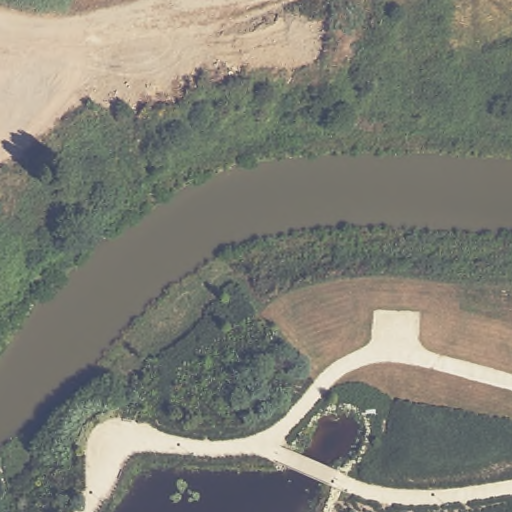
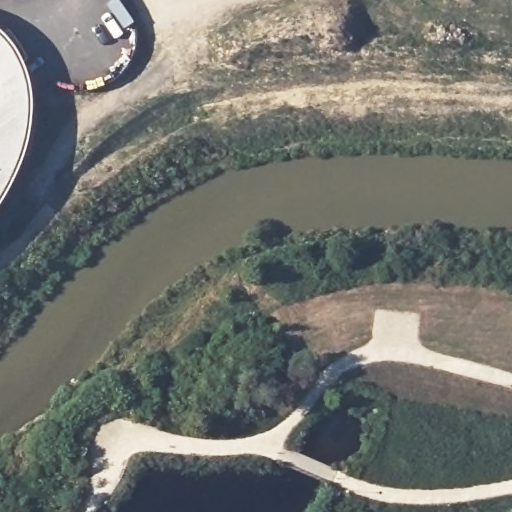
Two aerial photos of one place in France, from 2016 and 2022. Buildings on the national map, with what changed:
new [(5,36),(17,54),(25,75),(28,101),(25,134),(17,162),(2,192),(0,195),(0,31),(5,36)]

